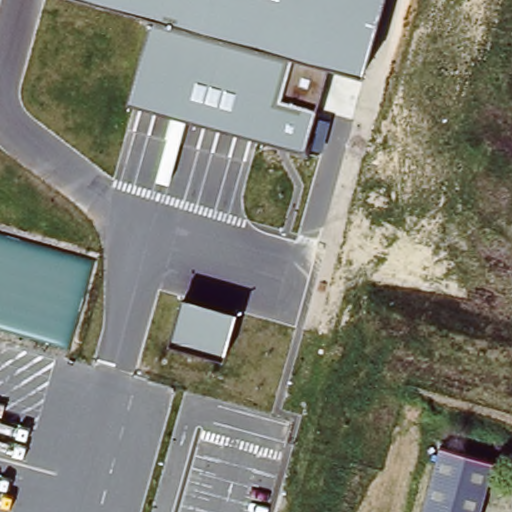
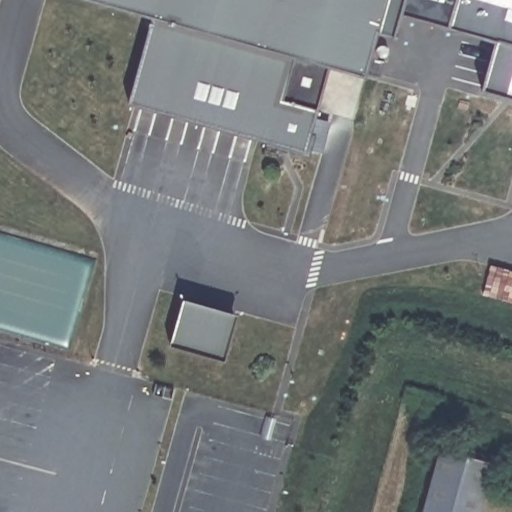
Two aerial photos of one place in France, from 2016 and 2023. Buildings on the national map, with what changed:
unchanged [(364,70),(330,61),(315,116),(329,120),(321,151),(305,146),(130,99),(153,12),(113,0),(383,0),(376,26),(364,70)]
new [(480,86),(493,37),(397,12),(393,31),(376,26),(383,0),(512,0),(512,95),(480,86)]
unchanged [(223,358),(172,342),(185,299),(236,313),(223,358)]
unchanged [(489,464),(476,512),(419,512),(437,452),(489,464)]

